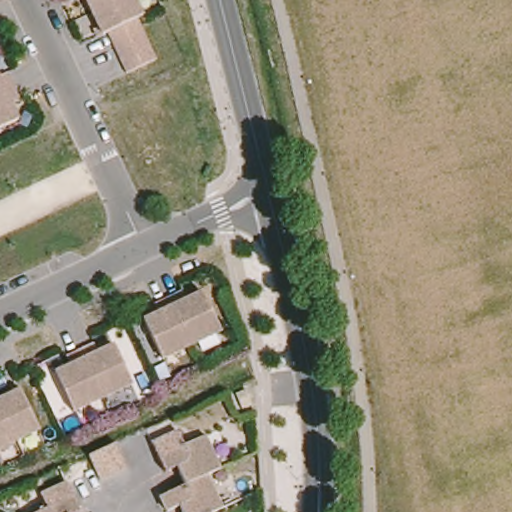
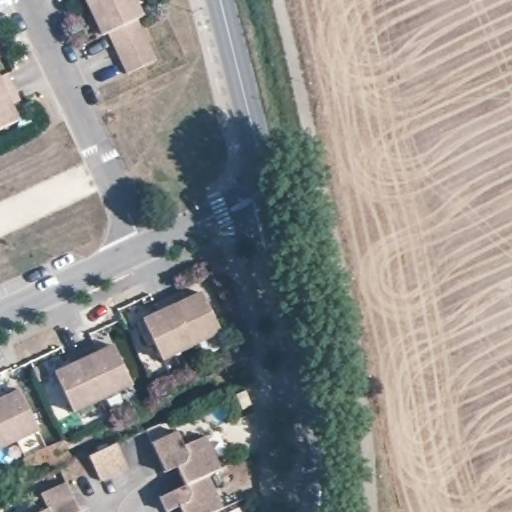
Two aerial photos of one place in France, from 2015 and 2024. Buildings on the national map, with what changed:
unchanged [(84,0),(119,0),(91,13),(84,0)]
unchanged [(134,0),(142,16),(136,19),(106,33),(101,35),(91,13),(119,0),(134,0)]
unchanged [(136,19),(156,59),(125,74),(106,33),(136,19)]
unchanged [(6,73),(13,86),(0,92),(0,76),(6,73)]
unchanged [(13,86),(19,100),(10,104),(17,120),(0,128),(0,92),(13,86)]
unchanged [(181,295),(185,304),(201,297),(220,337),(190,351),(167,302),(181,295)]
unchanged [(190,351),(161,364),(142,325),(158,318),(154,309),(167,302),(190,351)]
unchanged [(92,343),(97,352),(113,345),(131,384),(102,398),(79,349),(92,343)]
unchanged [(102,398),(72,412),(54,373),(69,365),(65,356),(79,349),(102,398)]
unchanged [(14,385),(34,427),(12,437),(0,412),(0,391),(14,385)]
unchanged [(235,393),(244,389),(250,403),(242,408),(235,393)]
unchanged [(12,437),(0,442),(0,412),(12,437)]
unchanged [(183,488),(174,469),(163,474),(151,446),(176,434),(183,448),(203,439),(218,473),(208,477),(183,488)]
unchanged [(114,438),(125,464),(99,476),(87,451),(114,438)]
unchanged [(177,509),(169,512),(165,512),(159,499),(183,488),(208,477),(222,509),(215,512),(179,512),(177,509)]
unchanged [(39,501),(64,489),(75,512),(44,512),(39,501)]

